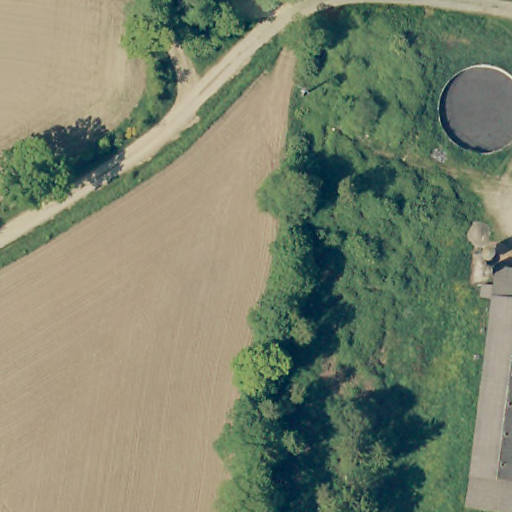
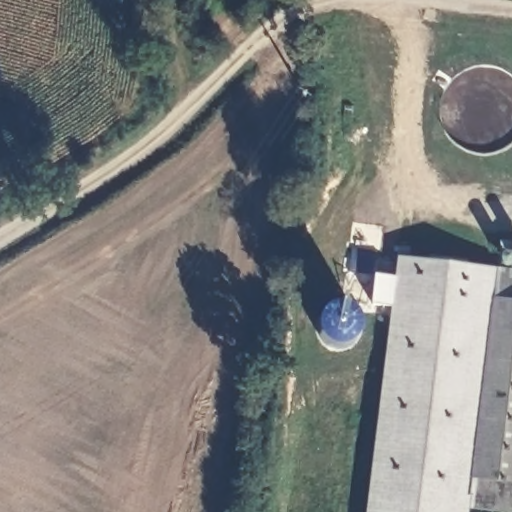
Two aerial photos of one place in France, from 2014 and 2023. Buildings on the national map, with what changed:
new [(494,287),(483,286),(482,297),(493,298),(467,507),(470,508),(469,512),(365,512),(397,257),(497,268),(494,287)]
unchanged [(482,297),(483,286),(494,287),(497,268),(512,271),(512,512),(503,512),(467,507),(493,298),(482,297)]

